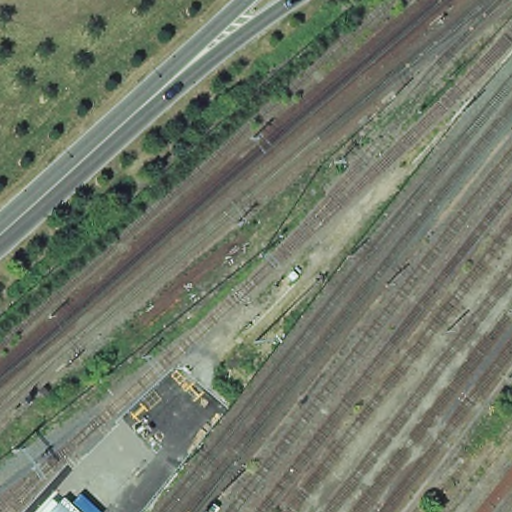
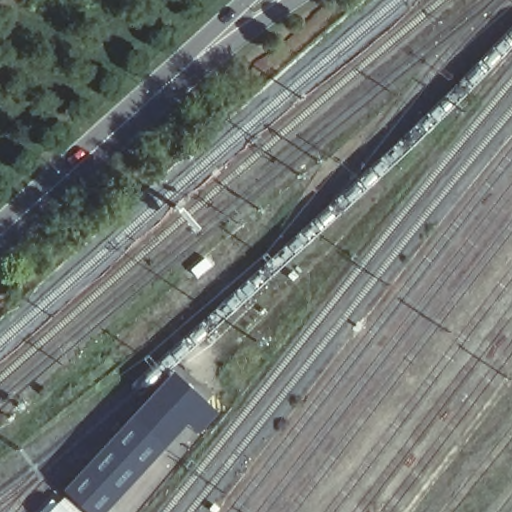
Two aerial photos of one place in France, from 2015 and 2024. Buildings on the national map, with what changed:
new [(201,438),(186,427),(108,512),(88,512),(65,489),(173,372),(219,411),(201,438)]
new [(50,512),(64,496),(81,512),(50,512)]

